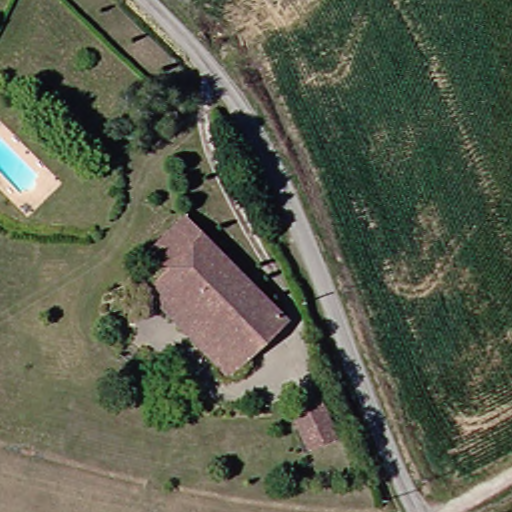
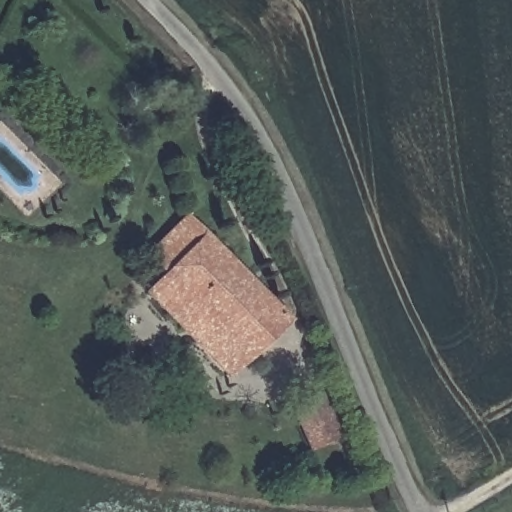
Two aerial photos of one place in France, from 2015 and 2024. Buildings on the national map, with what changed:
unchanged [(171,271),(152,250),(189,214),(210,234),(171,271)]
unchanged [(293,318),(249,365),(165,280),(171,271),(210,234),(293,318)]
unchanged [(238,376),(151,292),(165,280),(249,365),(238,376)]
unchanged [(318,451),(298,410),(325,397),(344,436),(318,451)]

